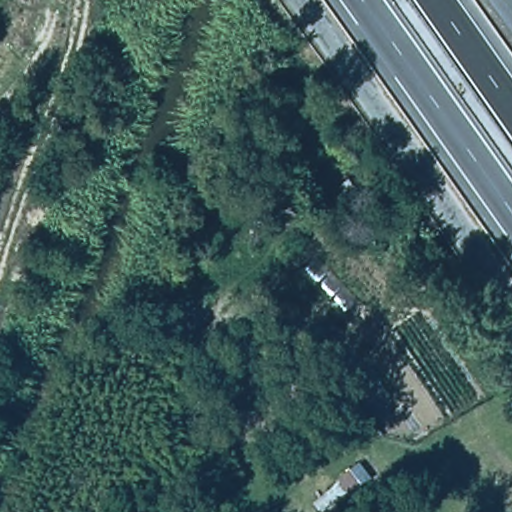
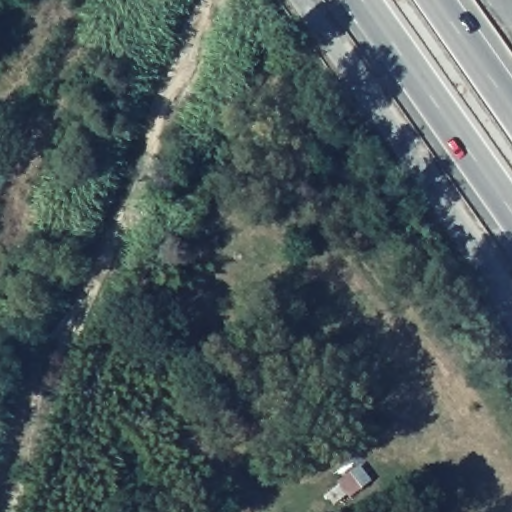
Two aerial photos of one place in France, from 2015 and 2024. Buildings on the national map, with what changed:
unchanged [(290,30),(321,89),(305,92),(270,42),(290,30)]

